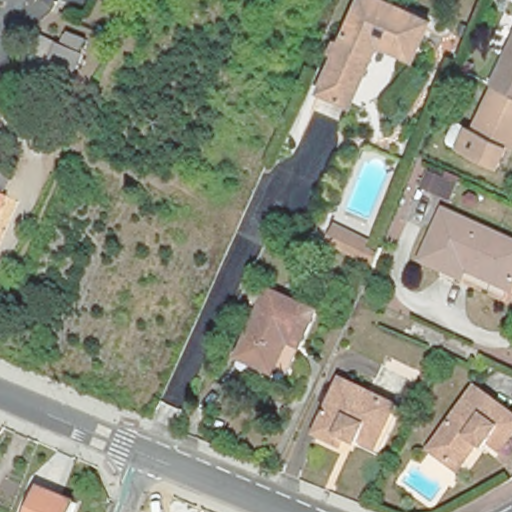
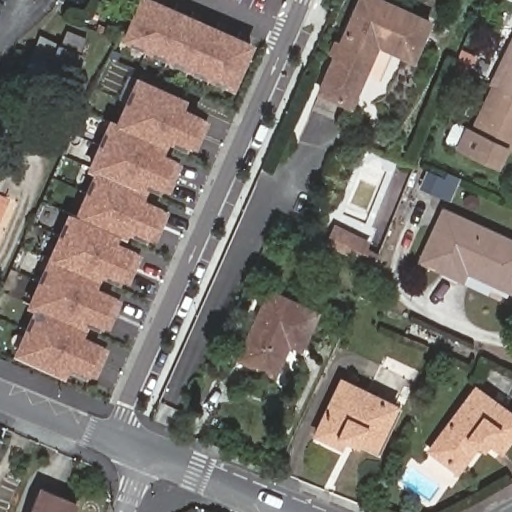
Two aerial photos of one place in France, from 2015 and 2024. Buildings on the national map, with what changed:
new [(139,0),(154,0),(248,41),(230,82),(123,35),(139,0)]
unchanged [(323,85),(326,79),(360,0),(391,0),(431,19),(414,56),(380,40),(356,93),(353,100),(323,85)]
unchanged [(70,95),(41,84),(57,44),(64,46),(70,31),(84,37),(78,50),(86,53),(70,95)]
unchanged [(490,76),(512,34),(512,87),(493,77),(490,76)]
unchanged [(450,116),(455,114),(466,119),(471,120),(493,77),(512,87),(512,134),(509,141),(503,139),(492,159),(455,140),(447,136),(444,130),(450,116)]
new [(138,80),(184,101),(180,109),(206,120),(200,134),(128,103),(138,80)]
new [(128,103),(200,134),(193,149),(167,137),(164,145),(157,142),(118,126),(128,103)]
new [(111,123),(118,126),(157,142),(153,151),(179,162),(173,177),(101,145),(111,123)]
new [(101,145),(173,177),(166,191),(140,180),(136,188),(97,171),(91,168),(101,145)]
unchanged [(0,220),(0,158),(18,165),(5,194),(11,196),(0,220)]
unchanged [(449,199),(417,184),(428,160),(460,175),(449,199)]
new [(97,171),(136,188),(143,191),(140,200),(166,211),(159,225),(87,194),(97,171)]
new [(87,194),(159,225),(153,240),(127,229),(123,236),(116,234),(77,216),(87,194)]
unchanged [(512,291),(512,292),(466,271),(461,280),(421,262),(446,210),(512,241),(512,291)]
new [(71,214),(77,216),(116,234),(112,242),(137,254),(131,267),(61,236),(71,214)]
unchanged [(322,246),(333,224),(379,245),(369,268),(322,246)]
new [(61,236),(131,267),(124,282),(99,270),(95,279),(50,260),(61,236)]
new [(50,260),(95,279),(91,287),(117,299),(111,313),(40,282),(50,260)]
new [(40,282),(111,313),(105,327),(79,315),(75,325),(37,308),(30,305),(40,282)]
unchanged [(316,313),(300,347),(290,343),(275,372),(240,357),(270,291),(316,313)]
new [(37,308),(75,325),(82,327),(78,336),(105,348),(99,362),(27,330),(37,308)]
new [(27,330),(99,362),(92,376),(66,364),(62,373),(16,353),(27,330)]
unchanged [(342,437),(339,445),(318,435),(343,381),(397,406),(378,448),(360,440),(358,445),(342,437)]
unchanged [(461,470),(432,450),(475,385),(512,412),(512,434),(503,448),(489,440),(484,447),(478,443),(461,470)]
new [(2,438),(0,441),(0,438),(2,438)]
unchanged [(32,512),(41,488),(76,502),(72,512),(32,512)]

